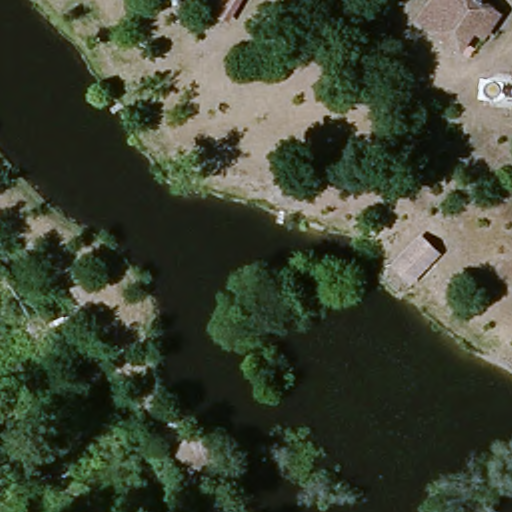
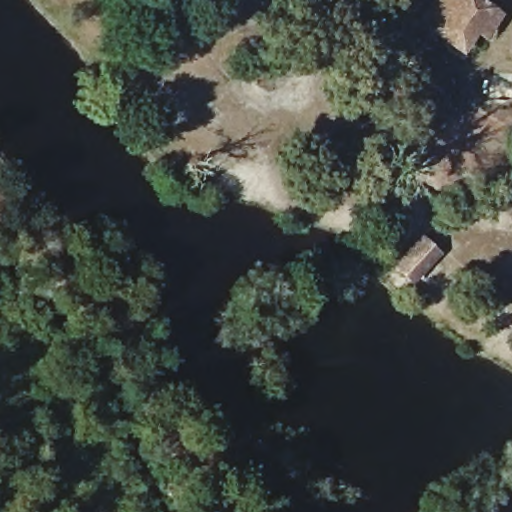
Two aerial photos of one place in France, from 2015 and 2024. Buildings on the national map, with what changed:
unchanged [(139,0),(148,0),(146,5),(139,0)]
unchanged [(215,14),(223,0),(235,0),(240,2),(231,24),(215,14)]
unchanged [(475,32),(461,49),(423,20),(438,6),(440,0),(480,0),(492,11),(501,19),(484,39),(475,32)]
unchanged [(447,255),(416,287),(398,265),(428,235),(447,255)]

